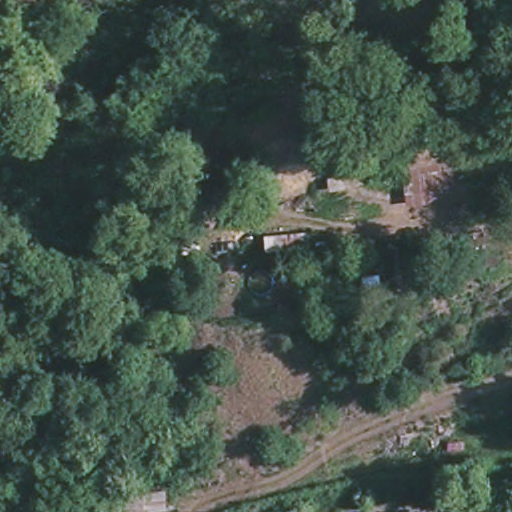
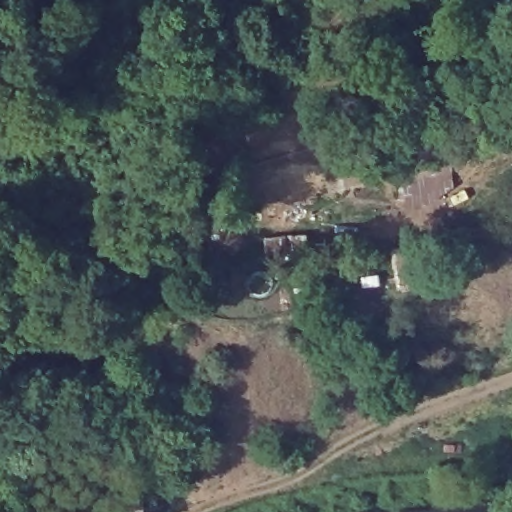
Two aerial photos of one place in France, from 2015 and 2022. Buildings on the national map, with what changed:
unchanged [(330,180),(363,176),(365,189),(348,191),(332,193),(330,180)]
unchanged [(201,252),(178,252),(178,233),(201,231),(201,252)]
unchanged [(393,255),(374,258),(371,240),(390,238),(393,255)]

